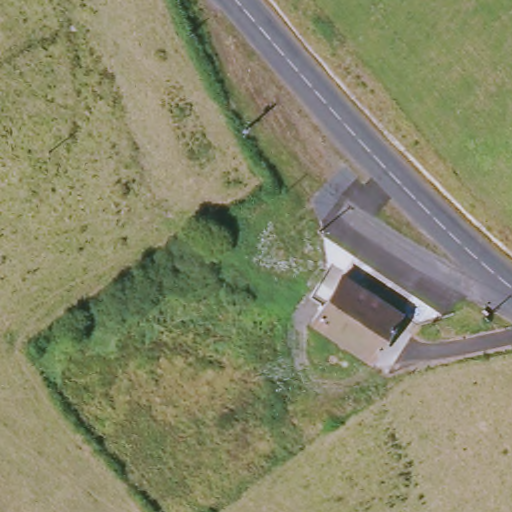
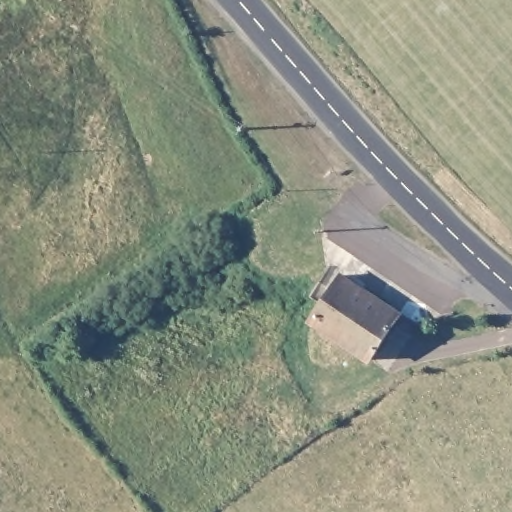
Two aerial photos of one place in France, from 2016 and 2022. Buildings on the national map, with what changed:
unchanged [(400,322),(372,366),(312,325),(340,282),(400,322)]

